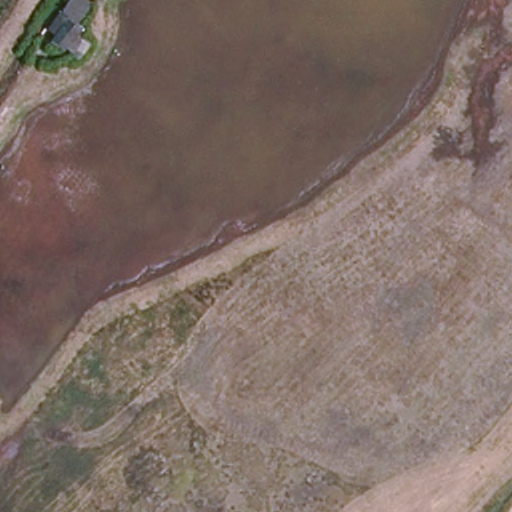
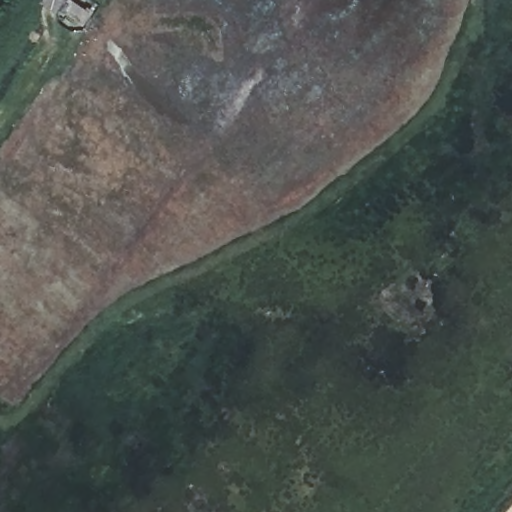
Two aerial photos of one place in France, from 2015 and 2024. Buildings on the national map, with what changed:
unchanged [(85,40),(76,57),(65,48),(59,50),(52,44),(56,35),(49,28),(57,15),(65,20),(67,18),(84,28),(78,34),(85,40)]

